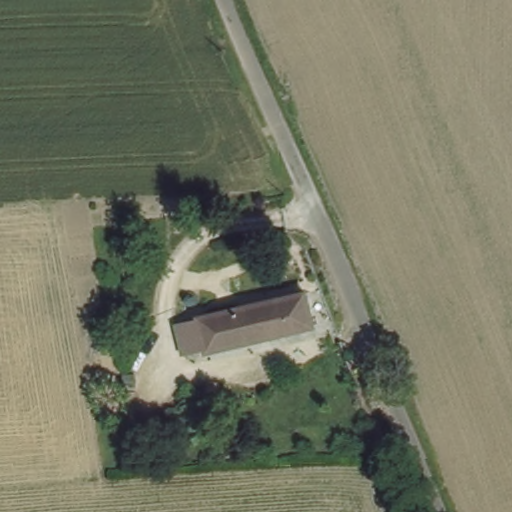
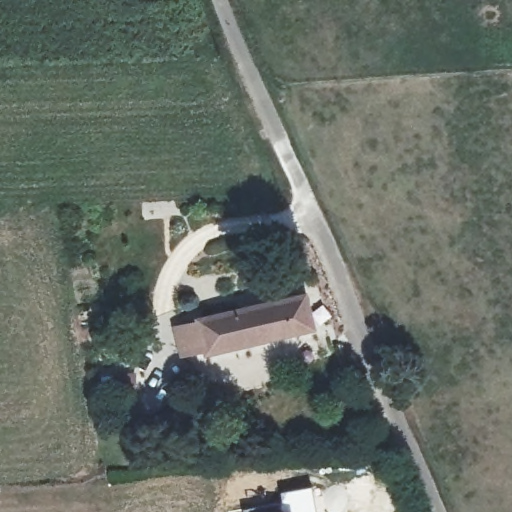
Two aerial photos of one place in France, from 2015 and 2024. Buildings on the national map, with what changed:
unchanged [(176,323),(200,317),(305,292),(313,327),(208,352),(185,358),(176,323)]
new [(281,502),(279,491),(308,486),(313,512),(241,512),(240,507),(281,502)]

